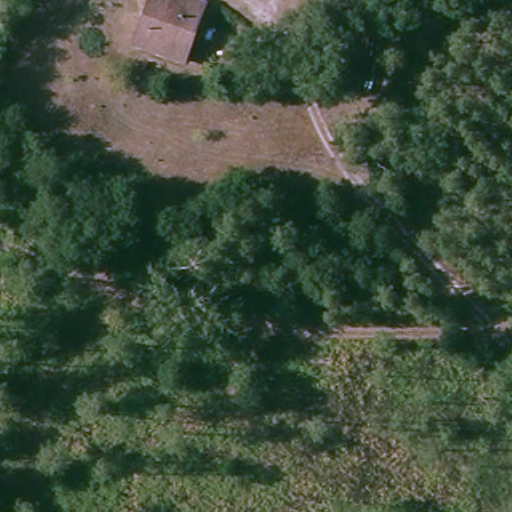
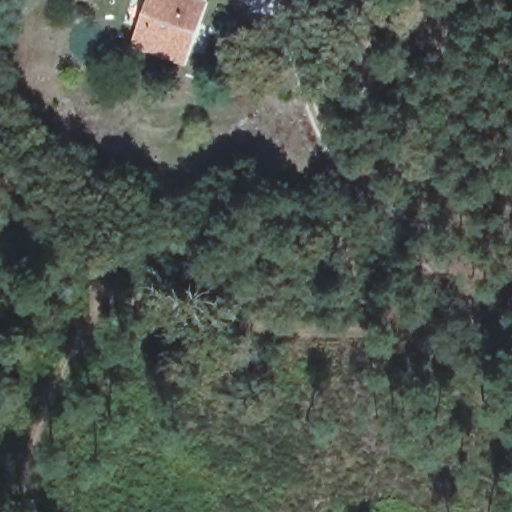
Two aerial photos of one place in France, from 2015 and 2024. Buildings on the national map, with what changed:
unchanged [(145,34),(156,4),(174,10),(178,0),(207,0),(177,83),(152,72),(162,39),(145,34)]

